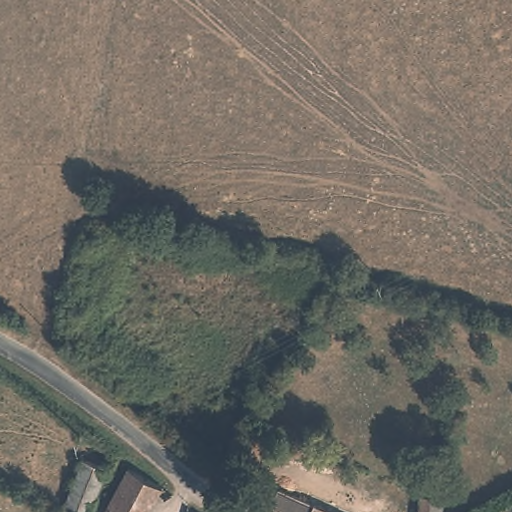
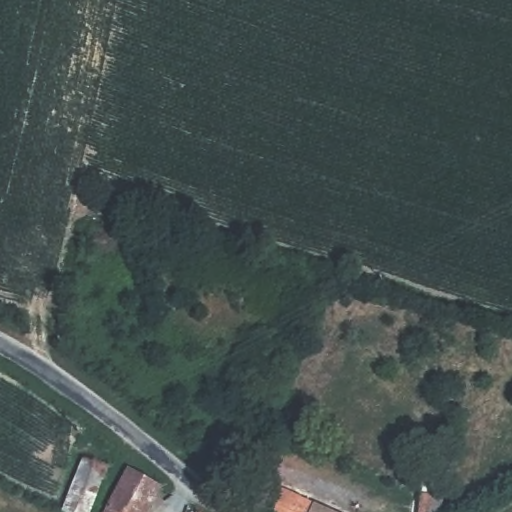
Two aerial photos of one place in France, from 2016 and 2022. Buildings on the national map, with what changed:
unchanged [(56,494),(78,451),(102,462),(80,506),(56,494)]
unchanged [(122,461),(146,472),(153,478),(149,486),(136,512),(94,512),(112,478),(122,461)]
unchanged [(269,482),(336,512),(257,512),(255,512),(269,482)]
unchanged [(445,495),(437,512),(420,512),(419,512),(430,488),(445,495)]
unchanged [(194,512),(190,512),(191,510),(194,512)]

